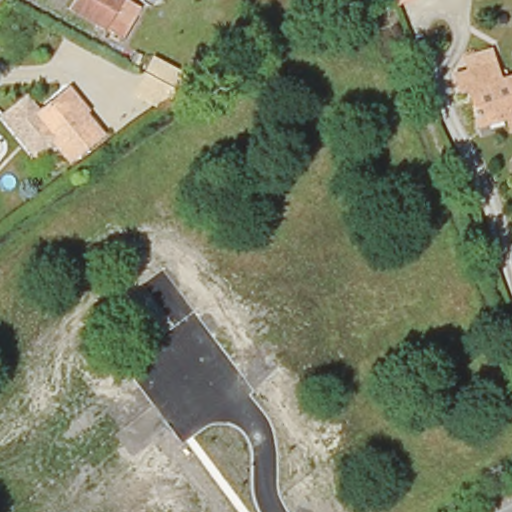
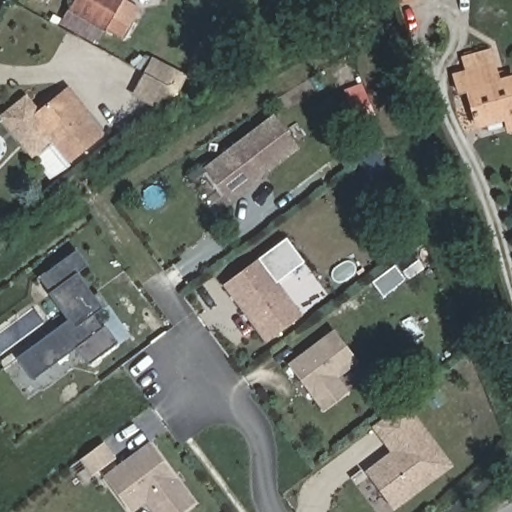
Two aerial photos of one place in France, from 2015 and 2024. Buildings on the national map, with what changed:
unchanged [(120,0),(126,4),(111,34),(74,15),(83,0),(120,0)]
unchanged [(474,105),(467,108),(459,88),(452,65),(490,52),(497,75),(502,87),(512,83),(512,127),(485,136),(474,105)]
new [(151,57),(187,75),(176,98),(167,94),(160,110),(132,96),(145,70),(151,57)]
unchanged [(68,161),(51,141),(33,157),(0,121),(0,120),(22,99),(38,112),(61,90),(67,85),(89,108),(83,115),(101,134),(68,161)]
new [(226,197),(203,165),(272,115),(295,146),(226,197)]
new [(12,360),(64,321),(44,295),(52,289),(41,275),(72,251),(83,266),(76,271),(101,306),(86,317),(97,332),(102,328),(114,345),(84,366),(72,350),(28,382),(12,360)]
new [(264,340),(222,283),(256,258),(298,315),(264,340)]
new [(333,378),(344,393),(321,410),(287,363),(332,331),(355,362),(333,378)]
new [(453,466),(393,511),(364,471),(390,451),(371,425),(407,403),(453,466)]
new [(189,503),(178,512),(149,512),(139,498),(125,508),(102,476),(146,445),(189,503)]

